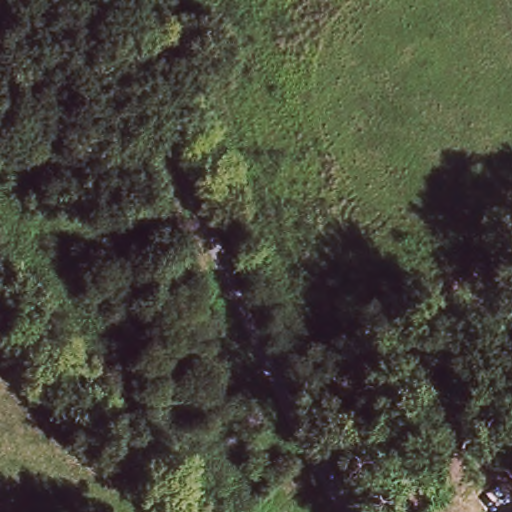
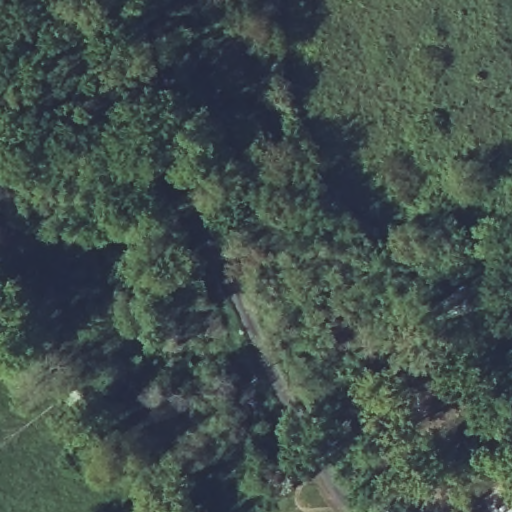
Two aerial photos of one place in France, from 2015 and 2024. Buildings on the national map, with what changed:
[]

